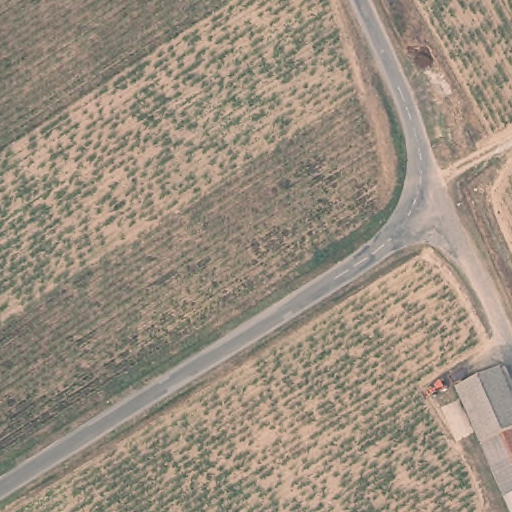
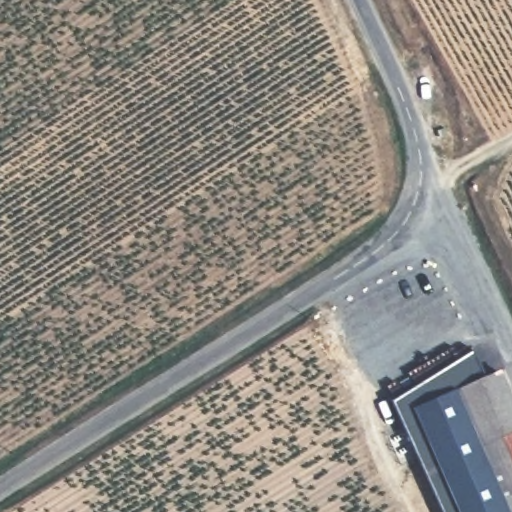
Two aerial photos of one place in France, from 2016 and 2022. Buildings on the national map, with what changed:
new [(391,401),(473,350),(485,376),(460,387),(508,494),(512,504),(512,512),(441,512),(391,401)]
unchanged [(460,387),(501,369),(512,392),(512,493),(508,494),(460,387)]
unchanged [(512,493),(512,504),(508,494),(512,493)]

